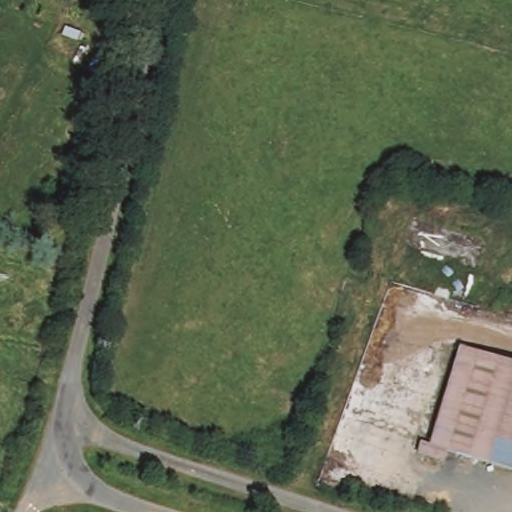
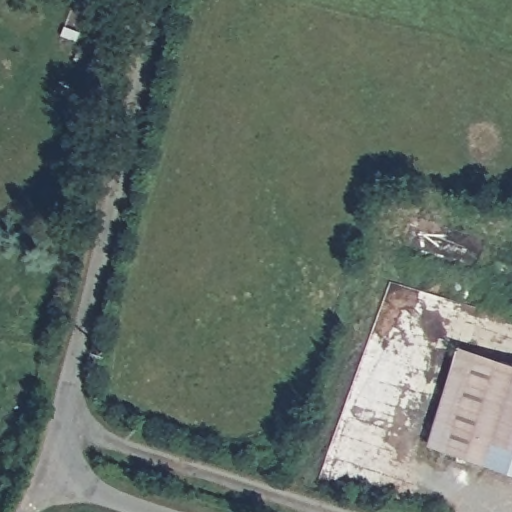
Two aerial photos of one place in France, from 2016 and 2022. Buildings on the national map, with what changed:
unchanged [(422,441),(433,445),(462,349),(512,365),(512,470),(449,451),(445,462),(420,453),(422,441)]

